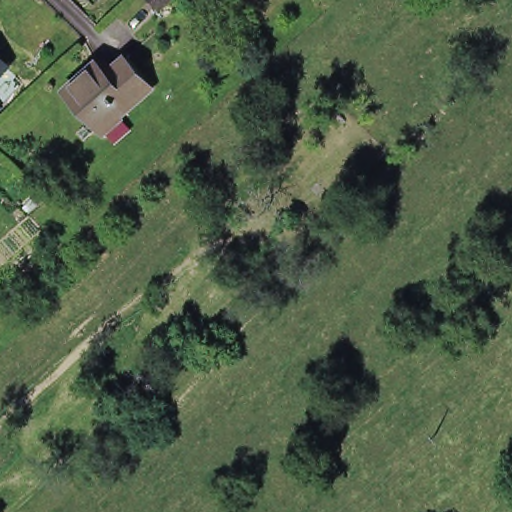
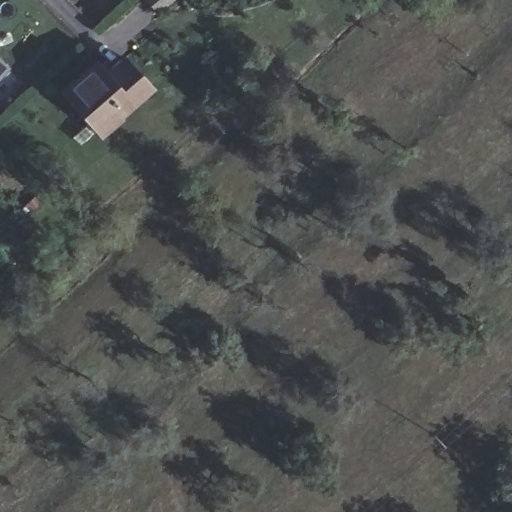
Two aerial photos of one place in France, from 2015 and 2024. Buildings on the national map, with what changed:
unchanged [(156,17),(143,1),(145,0),(174,0),(176,1),(156,17)]
unchanged [(103,131),(98,125),(67,86),(99,60),(101,63),(106,59),(113,67),(128,55),(151,86),(115,114),(118,119),(103,131)]
unchanged [(6,72),(10,76),(5,81),(1,77),(0,78),(0,63),(8,70),(6,72)]

